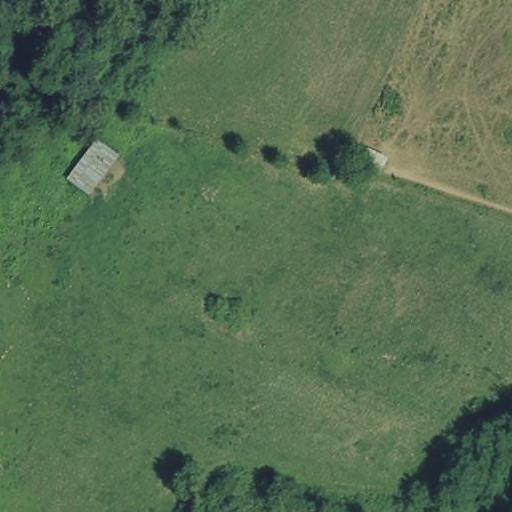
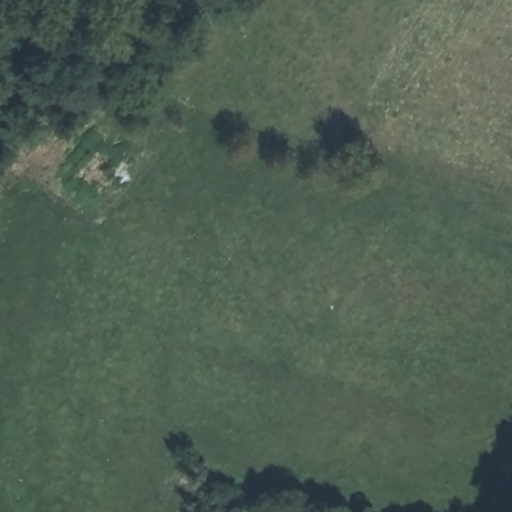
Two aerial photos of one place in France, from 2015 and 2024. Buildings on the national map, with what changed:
unchanged [(85,193),(65,177),(94,136),(118,152),(85,193)]

